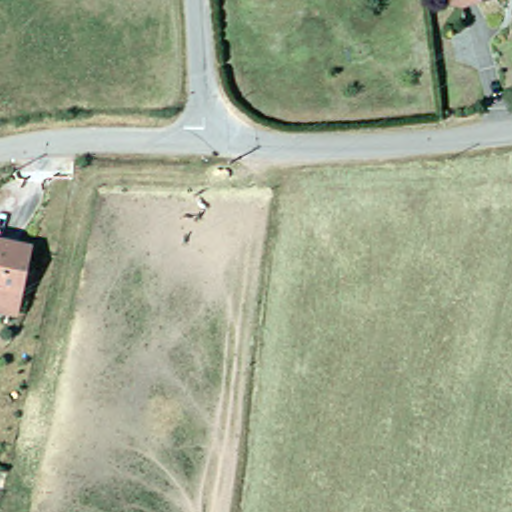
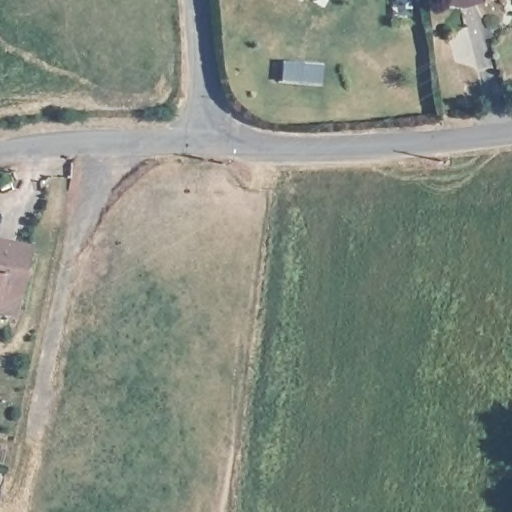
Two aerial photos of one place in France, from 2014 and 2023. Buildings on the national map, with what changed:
unchanged [(496,0),(464,9),(451,4),(450,0),(496,0)]
unchanged [(0,301),(0,228),(35,236),(31,255),(25,286),(20,285),(17,305),(0,301)]

